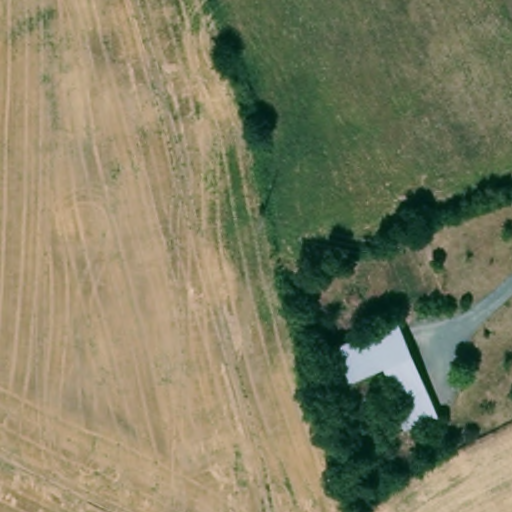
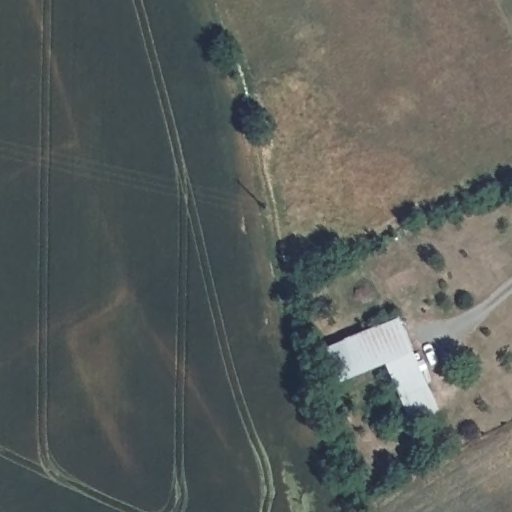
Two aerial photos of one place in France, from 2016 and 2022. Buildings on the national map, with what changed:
unchanged [(402,315),(442,415),(414,427),(387,363),(346,376),(333,341),(402,315)]

